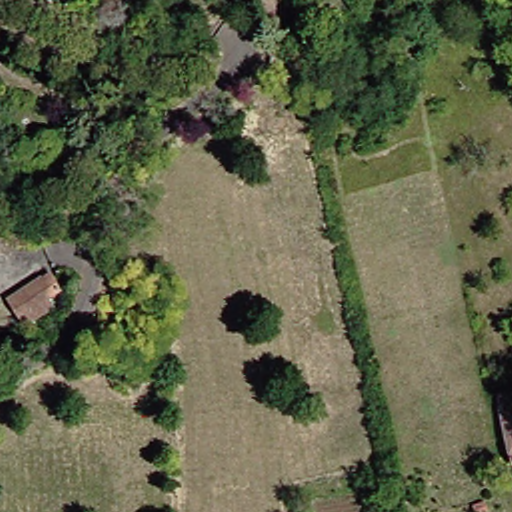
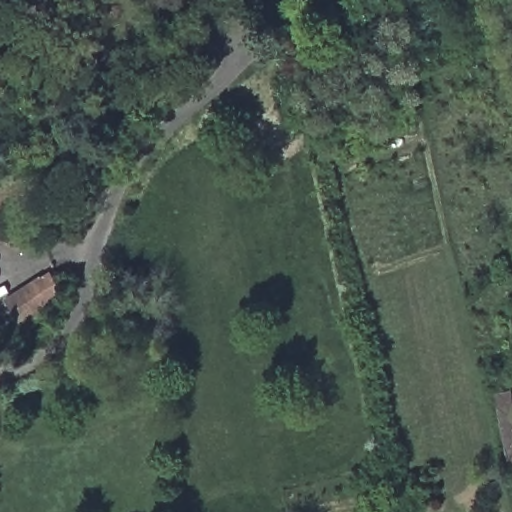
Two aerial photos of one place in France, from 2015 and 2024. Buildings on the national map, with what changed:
unchanged [(52,288),(38,297),(44,305),(17,324),(0,298),(41,271),(52,288)]
unchanged [(512,404),(512,450),(511,450),(501,406),(512,404)]

